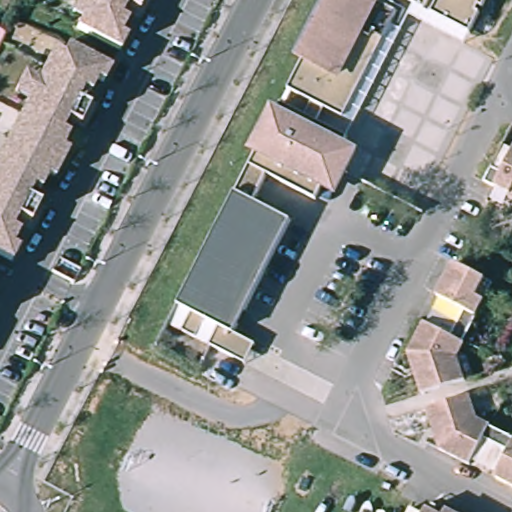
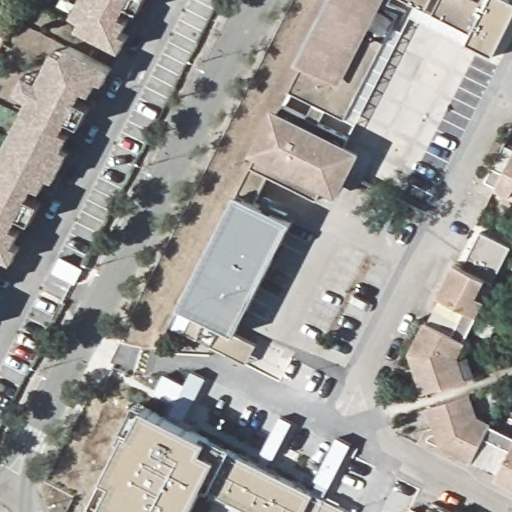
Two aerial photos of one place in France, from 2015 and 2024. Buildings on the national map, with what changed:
unchanged [(122,27),(111,21),(96,14),(101,5),(98,4),(92,0),(140,0),(140,1),(147,5),(140,19),(146,22),(143,28),(139,36),(122,27)]
unchanged [(336,0),(381,0),(378,6),(397,16),(361,87),(318,66),(304,63),(336,0)]
unchanged [(422,12),(396,0),(428,0),(422,12)]
unchanged [(480,10),(476,7),(473,13),(478,16),(467,36),(429,16),(437,0),(486,0),(480,10)]
unchanged [(28,99),(15,92),(22,78),(24,75),(34,80),(37,82),(45,66),(53,51),(62,56),(67,47),(78,52),(91,59),(110,69),(102,83),(96,80),(91,89),(89,93),(82,89),(78,96),(76,100),(78,101),(90,107),(80,126),(78,126),(66,119),(60,130),(68,134),(61,147),(67,151),(59,165),(17,143),(21,134),(12,129),(21,114),(28,99)]
unchanged [(304,63),(318,66),(361,87),(344,121),(325,112),(318,126),(347,140),(344,146),(358,153),(345,176),(335,197),(322,190),(316,202),(266,178),(254,204),(291,224),(234,335),(255,346),(245,365),(185,332),(170,324),(179,306),(304,63)]
unchanged [(12,152),(17,143),(59,165),(52,179),(46,176),(39,189),(31,185),(26,196),(39,203),(29,222),(16,215),(10,226),(17,230),(10,243),(17,247),(9,261),(0,256),(0,153),(3,147),(12,152)]
unchanged [(497,188),(487,183),(492,170),(505,177),(512,162),(512,196),(497,188)]
unchanged [(453,331),(466,305),(441,292),(457,260),(495,278),(465,337),(453,331)]
unchanged [(465,337),(467,338),(460,352),(468,376),(425,390),(411,348),(427,318),(453,331),(465,337)]
unchanged [(474,465),(442,449),(429,408),(472,394),(480,417),(494,424),(492,426),(486,440),(474,465)]
new [(209,432),(232,445),(230,450),(353,511),(352,512),(246,512),(202,490),(191,512),(96,512),(89,508),(96,497),(102,501),(111,483),(102,477),(126,429),(121,425),(134,400),(208,436),(209,432)]
unchanged [(492,426),(512,437),(512,452),(486,440),(492,426)]
unchanged [(500,478),(512,453),(512,485),(500,478)]
unchanged [(454,512),(440,512),(442,506),(454,512)]
unchanged [(437,512),(429,512),(430,509),(437,512)]

